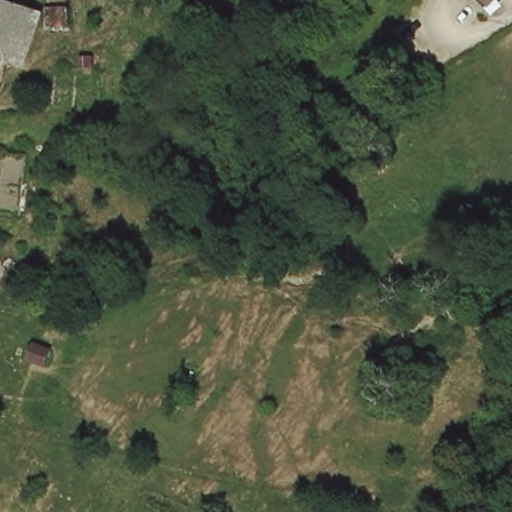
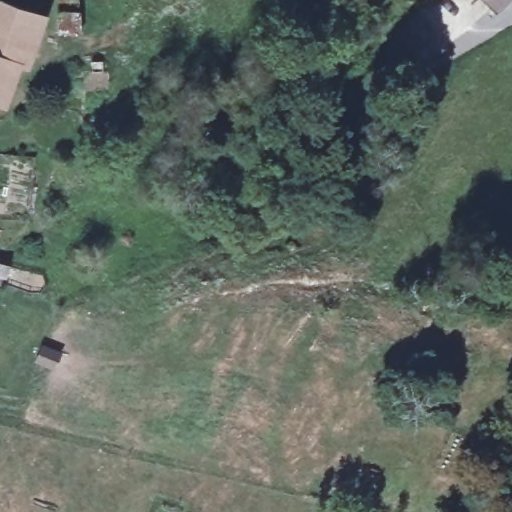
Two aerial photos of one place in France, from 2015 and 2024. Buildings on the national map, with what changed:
unchanged [(502,0),(494,8),(485,0),(502,0)]
unchanged [(36,17),(20,64),(10,63),(0,87),(0,1),(36,17)]
unchanged [(93,36),(70,35),(71,11),(95,6),(93,36)]

